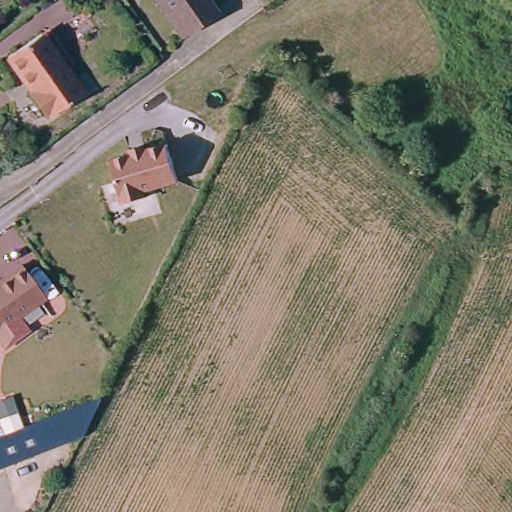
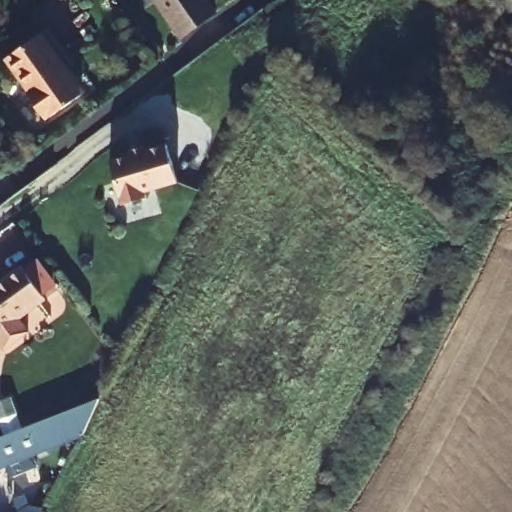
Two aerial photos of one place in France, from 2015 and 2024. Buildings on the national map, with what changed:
unchanged [(209,6),(178,30),(156,0),(205,0),(209,6)]
unchanged [(81,93),(48,116),(48,115),(45,117),(29,93),(31,91),(8,56),(40,34),(81,93)]
unchanged [(179,180),(145,190),(147,196),(125,203),(111,160),(133,154),(131,149),(145,145),(146,149),(168,143),(179,180)]
unchanged [(28,330),(4,348),(0,342),(0,281),(21,266),(45,298),(19,317),(28,330)]
unchanged [(92,401),(98,398),(80,435),(0,467),(0,437),(41,421),(92,401)]

